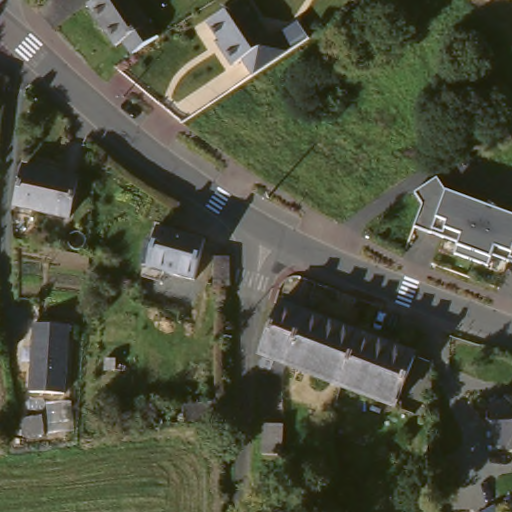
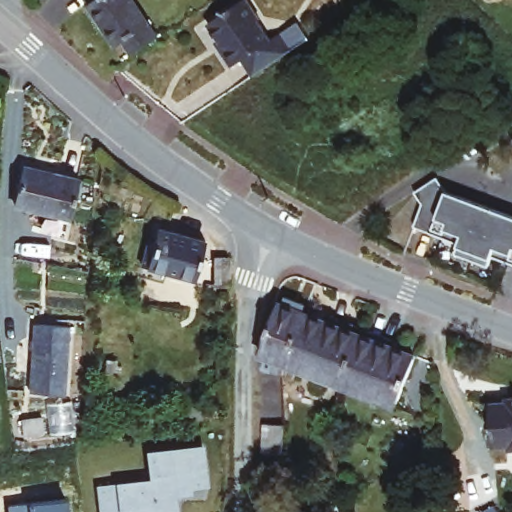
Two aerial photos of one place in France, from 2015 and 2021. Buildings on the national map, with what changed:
unchanged [(124,45),(118,50),(88,3),(91,0),(138,0),(166,37),(136,60),(124,45)]
unchanged [(239,59),(229,66),(219,51),(222,49),(204,24),(238,0),(244,0),(255,17),(252,20),(265,40),(293,21),(305,39),(250,77),(239,59)]
unchanged [(25,172),(81,179),(77,217),(21,211),(25,172)]
unchanged [(512,224),(512,267),(488,258),(480,270),(447,261),(452,241),(407,225),(411,206),(404,198),(429,180),(441,194),(512,224)]
unchanged [(207,241),(197,278),(150,266),(160,228),(207,241)]
unchanged [(293,363),(289,374),(273,368),(277,356),(267,352),(287,304),(313,315),(293,363)]
unchanged [(365,335),(344,384),(293,363),(313,315),(365,335)]
unchanged [(30,391),(36,322),(71,324),(66,395),(30,391)]
unchanged [(417,356),(399,406),(344,384),(365,335),(417,356)]
unchanged [(504,406),(503,400),(512,399),(512,442),(499,444),(494,408),(504,406)]
unchanged [(283,425),(288,426),(288,456),(286,456),(267,454),(268,450),(269,424),(283,425)]
new [(151,482),(148,454),(202,449),(206,487),(190,489),(190,495),(174,497),(175,512),(131,512),(130,510),(120,511),(121,512),(99,512),(97,487),(151,482)]
unchanged [(502,508),(502,498),(512,497),(512,507),(502,508)]
new [(66,502),(67,512),(9,512),(9,507),(66,502)]

